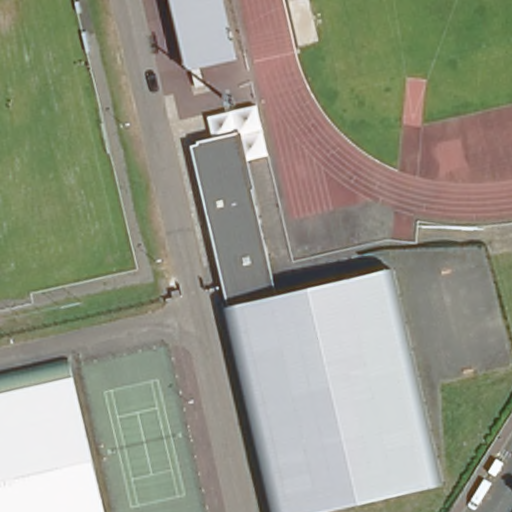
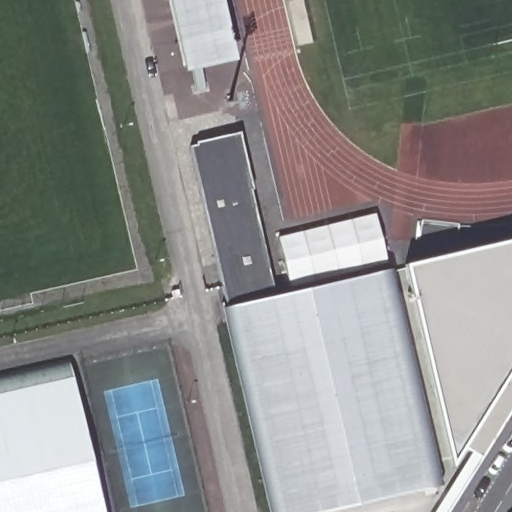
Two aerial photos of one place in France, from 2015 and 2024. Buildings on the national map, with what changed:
unchanged [(233,52),(180,63),(166,0),(221,0),(233,52)]
unchanged [(182,148),(232,137),(245,190),(195,201),(182,148)]
unchanged [(269,297),(385,271),(434,485),(317,512),(262,512),(216,310),(220,309),(195,201),(245,190),(269,297)]
new [(463,449),(452,468),(406,266),(512,241),(512,370),(463,449)]
unchanged [(0,512),(0,374),(77,357),(111,512),(0,512)]
new [(479,459),(463,449),(512,370),(512,406),(479,459)]

